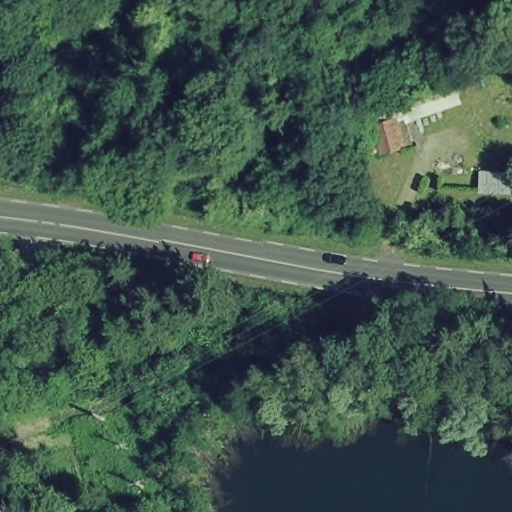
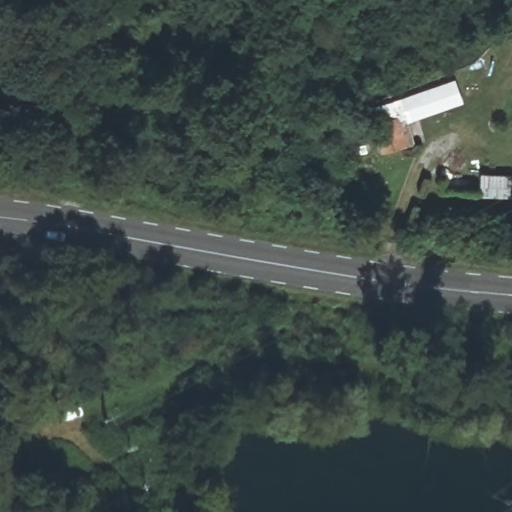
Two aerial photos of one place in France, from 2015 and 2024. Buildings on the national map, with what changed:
unchanged [(404,123),(397,98),(454,78),(463,101),(404,123)]
unchanged [(512,174),(512,199),(478,198),(479,172),(512,174)]

